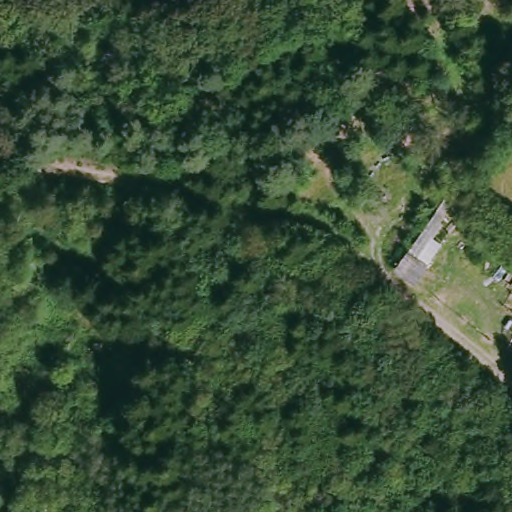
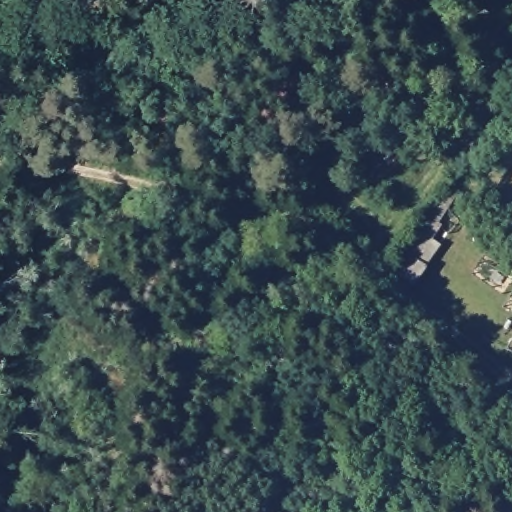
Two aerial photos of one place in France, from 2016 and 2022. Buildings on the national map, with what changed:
unchanged [(398,270),(435,221),(455,235),(418,290),(398,270)]

